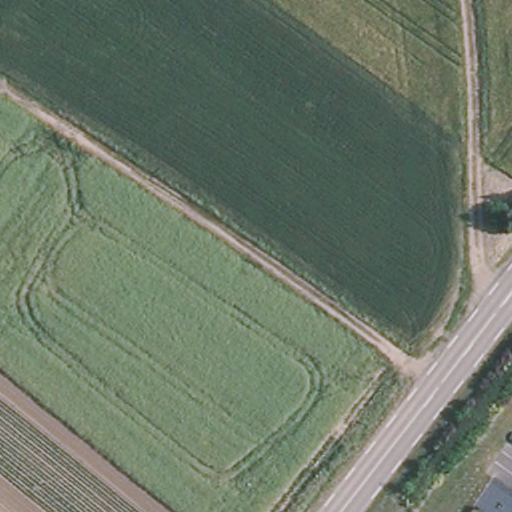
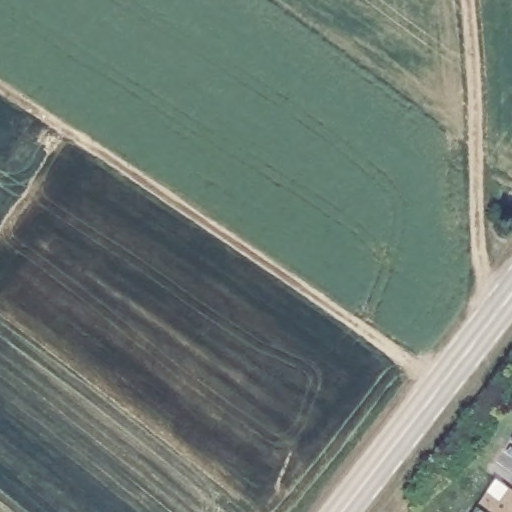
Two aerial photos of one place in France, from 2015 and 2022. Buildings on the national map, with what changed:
unchanged [(512,213),(510,212),(512,210),(512,213)]

